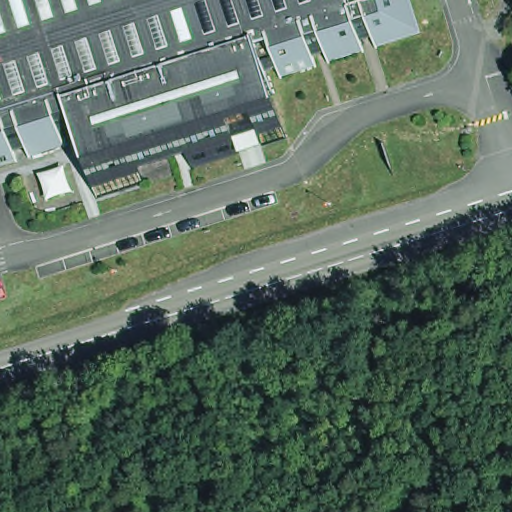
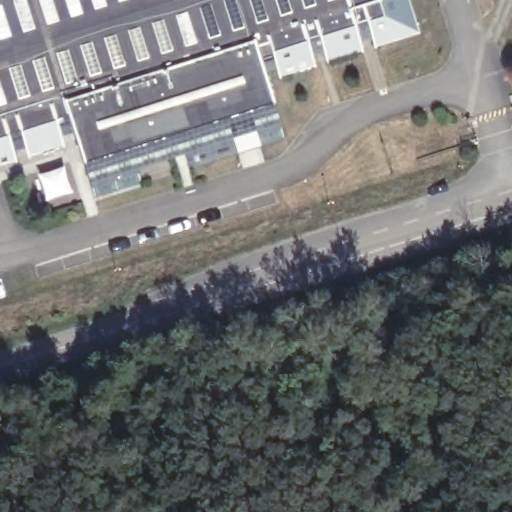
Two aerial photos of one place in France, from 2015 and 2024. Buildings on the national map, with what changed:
unchanged [(368,3),(359,6),(360,14),(326,26),(323,19),(312,21),(313,30),(279,40),(276,35),(266,37),(287,106),(264,114),(261,103),(236,112),(239,121),(191,136),(188,121),(139,139),(144,152),(94,169),(73,103),(58,106),(61,116),(28,126),(24,119),(12,123),(15,131),(0,135),(0,0),(406,0),(370,10),(368,3)]

